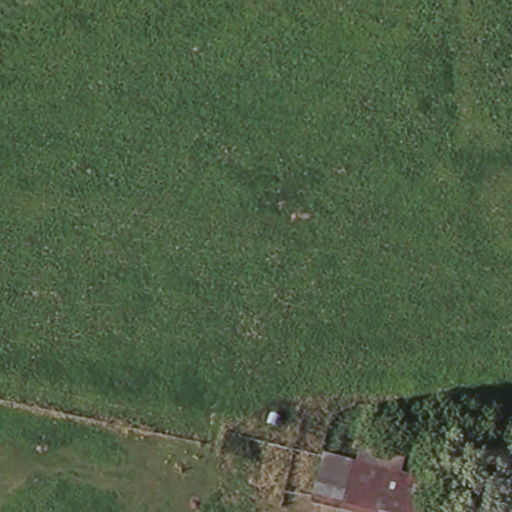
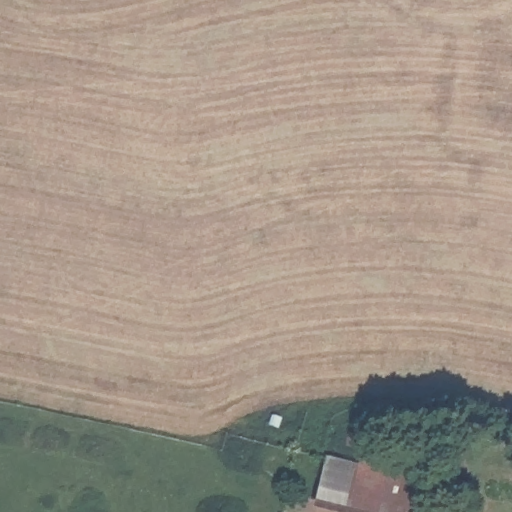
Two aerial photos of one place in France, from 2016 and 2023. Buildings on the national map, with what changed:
unchanged [(361,502),(330,493),(342,451),(373,459),(361,502)]
unchanged [(399,466),(387,509),(361,502),(373,459),(399,466)]
unchanged [(434,475),(424,512),(398,512),(387,509),(399,466),(434,475)]

